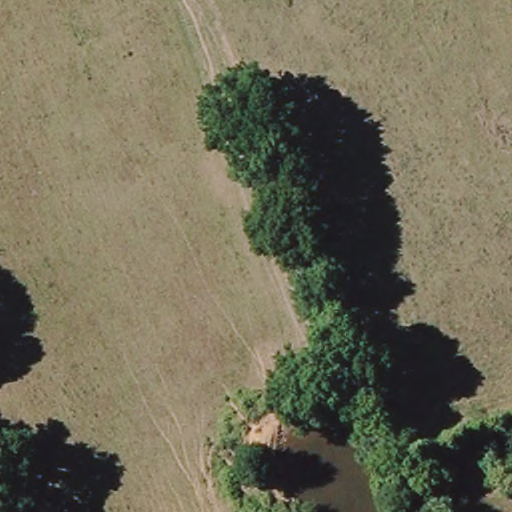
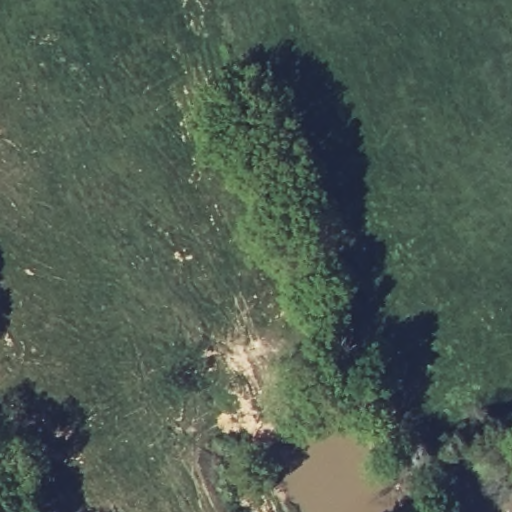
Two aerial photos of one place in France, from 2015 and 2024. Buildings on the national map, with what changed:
[]

